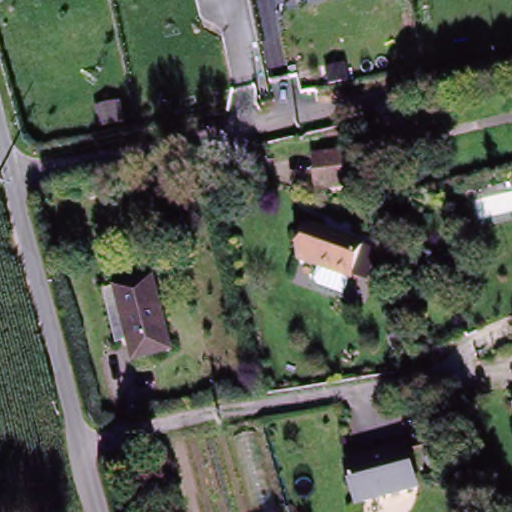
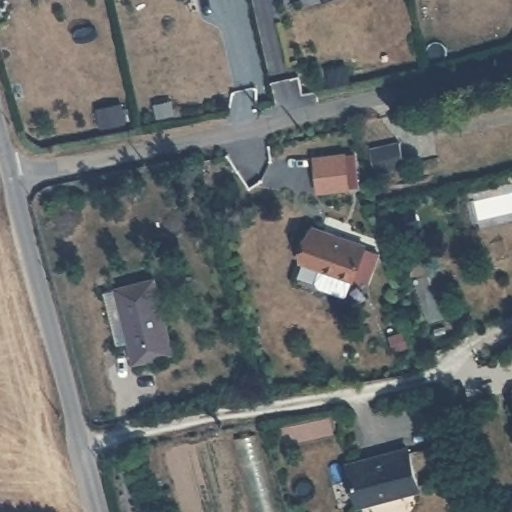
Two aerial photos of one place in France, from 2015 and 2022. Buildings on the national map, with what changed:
unchanged [(376,173),(370,149),(398,142),(405,167),(376,173)]
unchanged [(347,187),(318,191),(314,157),(343,154),(347,187)]
unchanged [(371,249),(362,275),(348,270),(346,274),(296,256),(308,222),(358,241),(357,244),(371,249)]
unchanged [(134,360),(127,337),(117,340),(105,288),(117,286),(116,282),(156,273),(175,350),(134,360)]
unchanged [(418,494),(357,510),(346,468),(407,452),(418,494)]

